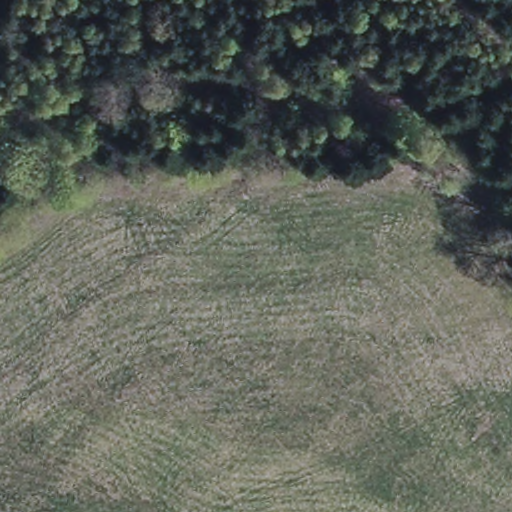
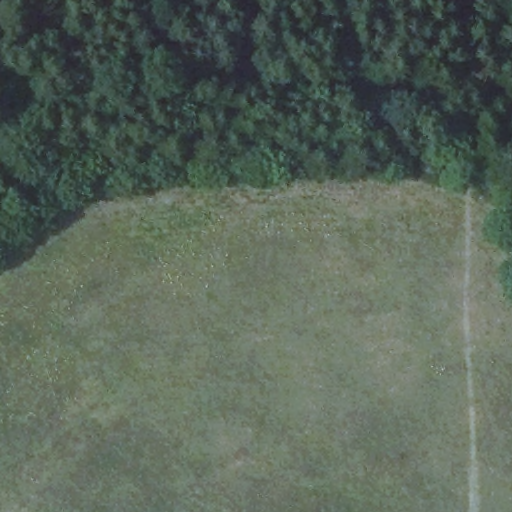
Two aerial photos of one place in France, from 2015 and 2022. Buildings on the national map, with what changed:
[]

